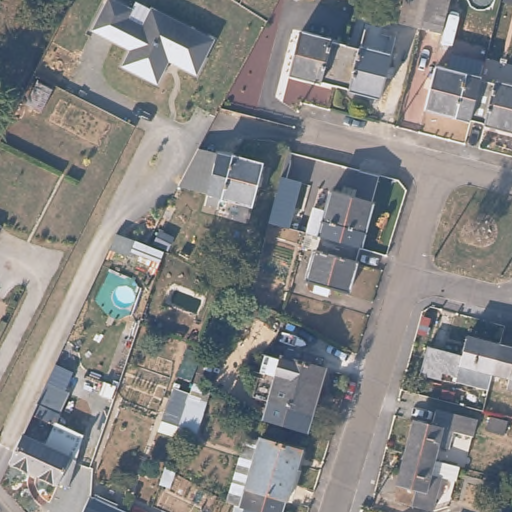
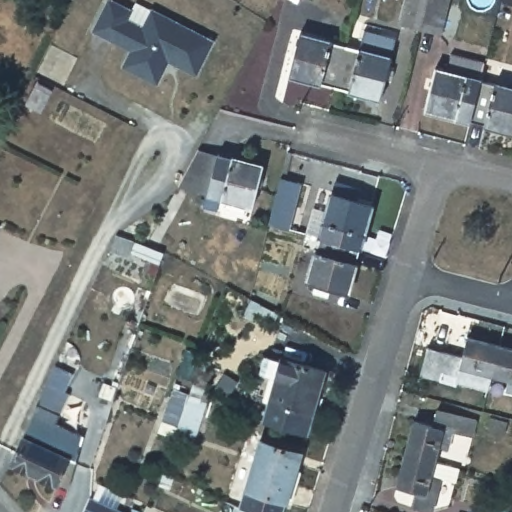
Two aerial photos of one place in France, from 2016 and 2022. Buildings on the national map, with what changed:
unchanged [(138,71),(122,64),(131,47),(96,30),(111,0),(116,0),(134,10),(129,19),(145,26),(154,9),(166,15),(215,40),(199,73),(167,57),(162,68),(156,80),(138,71)]
unchanged [(422,23),(399,18),(404,0),(449,0),(443,28),(422,23)]
unchanged [(290,69),(299,28),(351,40),(341,81),(290,69)]
unchanged [(351,40),(391,49),(389,58),(394,59),(392,72),(386,71),(381,91),(341,81),(351,40)]
unchanged [(425,105),(434,65),(477,75),(467,116),(425,105)]
unchanged [(477,75),(512,83),(512,126),(467,116),(477,75)]
unchanged [(177,188),(197,150),(216,154),(206,195),(177,188)]
unchanged [(263,166),(253,207),(206,195),(216,154),(263,166)]
unchanged [(304,182),(293,228),(271,223),(282,177),(304,182)]
unchanged [(308,236),(314,211),(326,214),(332,193),(341,195),(343,188),(355,191),(353,198),(372,203),(362,249),(308,236)]
unchanged [(0,227),(0,224),(1,225),(0,227)]
unchanged [(317,297),(318,288),(310,285),(317,254),(304,251),(308,236),(362,249),(351,296),(334,292),(332,300),(317,297)]
unchanged [(170,259),(163,278),(148,274),(154,253),(170,259)]
unchanged [(489,371),(484,387),(449,378),(449,372),(440,370),(437,378),(417,372),(424,343),(459,353),(465,334),(496,343),(489,371)]
unchanged [(505,389),(508,377),(489,371),(496,343),(512,347),(512,390),(505,389)]
unchanged [(261,396),(267,379),(272,381),(274,375),(267,373),(272,355),(286,359),(290,360),(291,358),(333,370),(320,414),(277,401),(273,400),(261,396)]
unchanged [(60,364),(84,375),(79,386),(63,379),(42,423),(39,422),(30,437),(21,432),(37,399),(55,359),(56,357),(62,359),(61,361),(60,364)]
unchanged [(159,425),(176,382),(215,395),(202,431),(159,425)]
unchanged [(403,445),(412,412),(431,418),(436,402),(476,413),(470,431),(452,426),(447,444),(436,441),(433,453),(403,445)]
unchanged [(512,425),(512,427),(508,438),(491,433),(494,420),(512,425)]
unchanged [(63,453),(74,459),(64,486),(55,482),(54,483),(6,460),(21,432),(30,437),(39,422),(42,423),(59,432),(70,437),(68,441),(63,453)]
unchanged [(252,438),(258,440),(264,442),(265,437),(307,450),(293,499),(289,500),(286,512),(266,512),(242,505),(238,504),(233,501),(246,456),(252,438)]
unchanged [(434,488),(430,504),(410,499),(414,483),(394,477),(403,445),(433,453),(448,457),(444,471),(430,467),(425,485),(434,488)]
unchanged [(132,512),(86,512),(94,495),(132,512)]
unchanged [(242,505),(266,512),(240,512),(242,505)]

